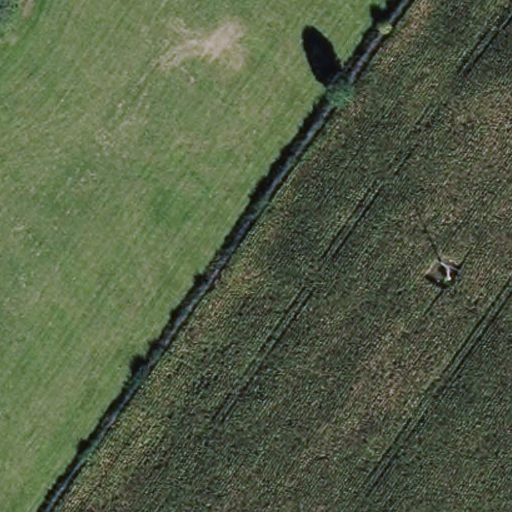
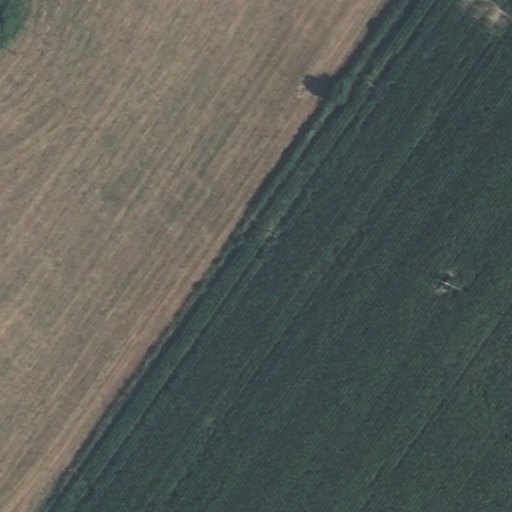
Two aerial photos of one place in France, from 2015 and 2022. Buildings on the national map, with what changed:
[]

